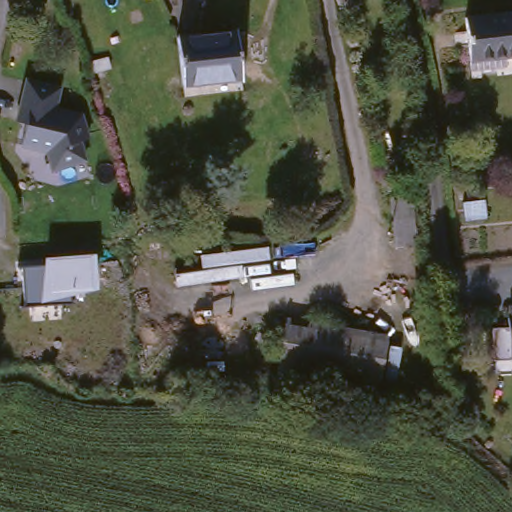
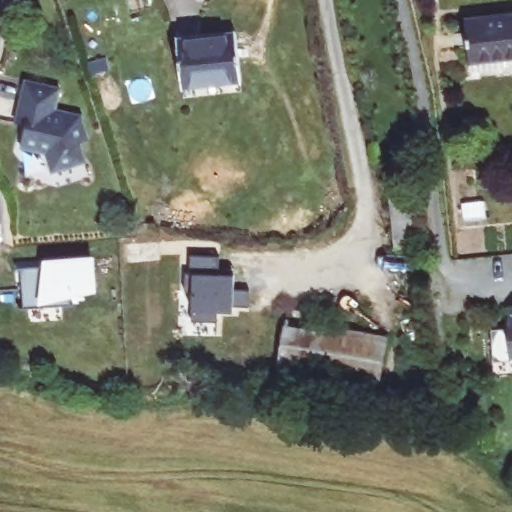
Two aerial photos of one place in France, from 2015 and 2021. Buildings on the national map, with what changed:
unchanged [(466,19),(512,13),(512,65),(472,71),(466,19)]
unchanged [(180,86),(176,36),(235,32),(239,81),(180,86)]
unchanged [(70,83),(66,104),(83,110),(99,138),(84,145),(89,159),(49,173),(39,149),(17,142),(21,122),(12,119),(22,72),(70,83)]
unchanged [(69,297),(69,302),(22,306),(21,267),(43,266),(44,258),(94,253),(97,289),(69,297)]
new [(186,274),(190,274),(190,257),(220,257),(220,275),(235,275),(235,290),(250,291),(250,307),(234,307),(234,312),(219,311),(219,323),(192,322),(192,293),(185,292),(186,274)]
unchanged [(490,321),(497,320),(496,310),(511,308),(512,310),(512,358),(495,361),(490,321)]
unchanged [(286,326),(390,342),(382,399),(274,385),(286,326)]

